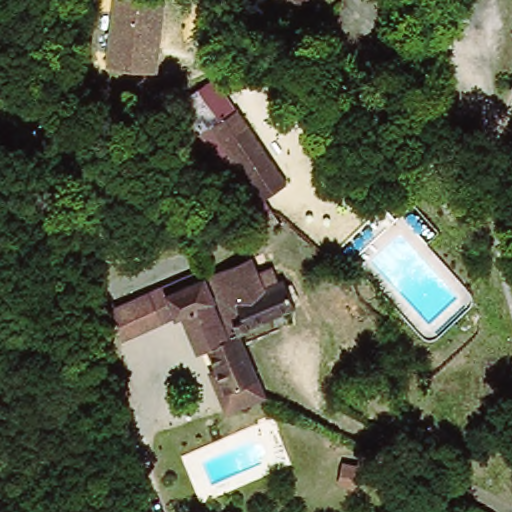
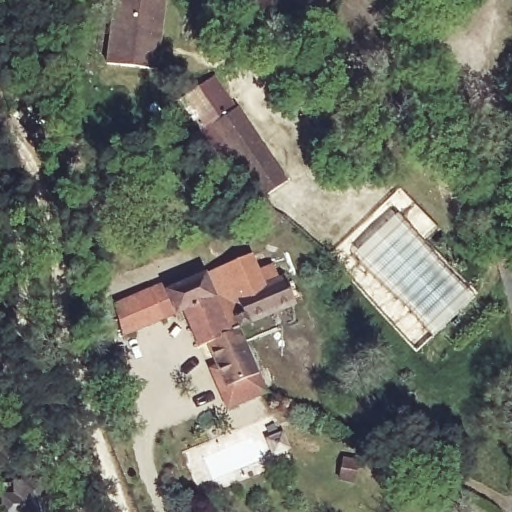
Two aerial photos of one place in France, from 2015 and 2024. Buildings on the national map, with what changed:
unchanged [(103,63),(111,0),(130,0),(165,5),(158,71),(103,63)]
unchanged [(295,0),(307,0),(301,6),(295,0)]
unchanged [(243,171),(231,177),(197,136),(208,127),(191,99),(219,74),(286,180),(264,201),(243,171)]
unchanged [(269,278),(276,275),(288,308),(233,329),(261,400),(226,414),(213,382),(218,380),(203,345),(193,349),(179,317),(115,339),(109,306),(193,270),(194,273),(243,253),(249,267),(263,261),(269,278)]

